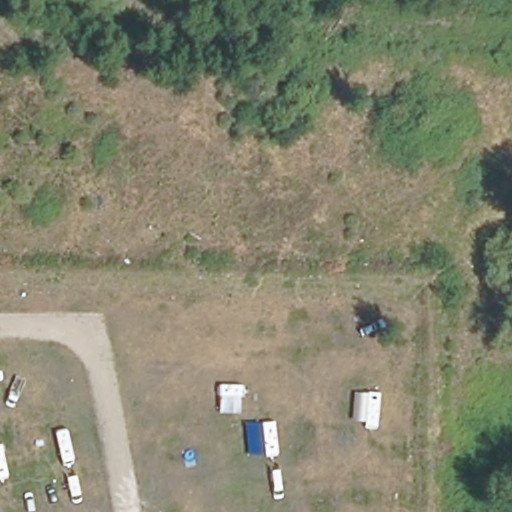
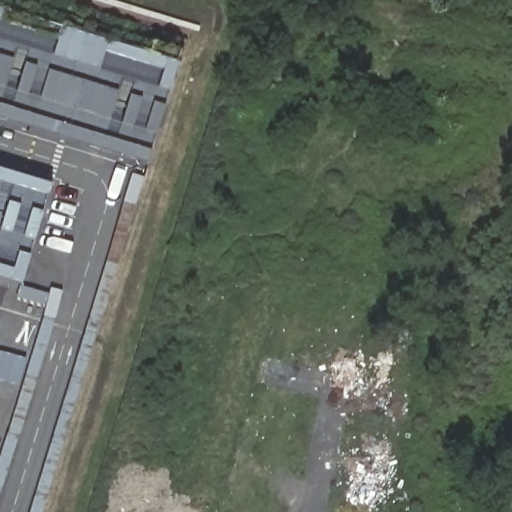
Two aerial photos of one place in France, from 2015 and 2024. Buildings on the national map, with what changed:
new [(0,118),(0,9),(179,64),(149,164),(0,118)]
new [(0,278),(0,170),(53,186),(23,285),(0,278)]

